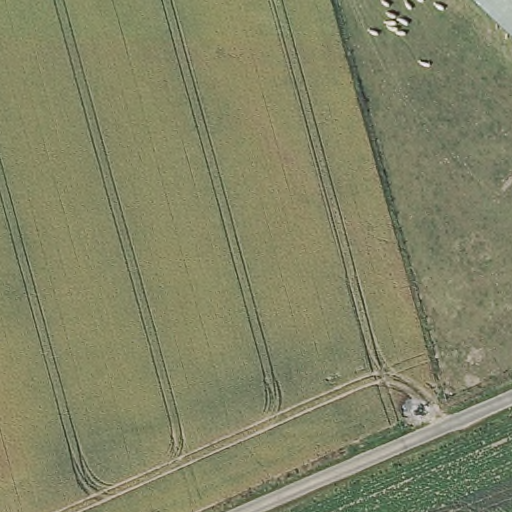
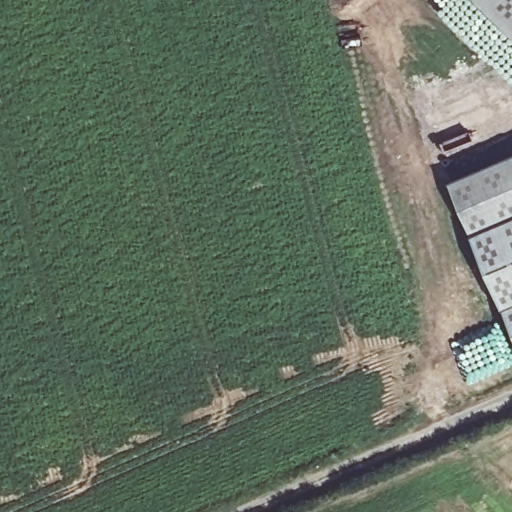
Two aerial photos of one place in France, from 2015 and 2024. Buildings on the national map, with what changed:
unchanged [(479,0),(512,0),(512,32),(479,0)]
new [(450,180),(512,153),(512,323),(450,180)]

